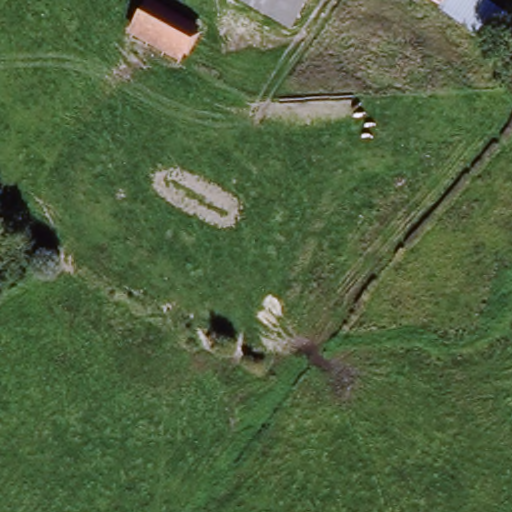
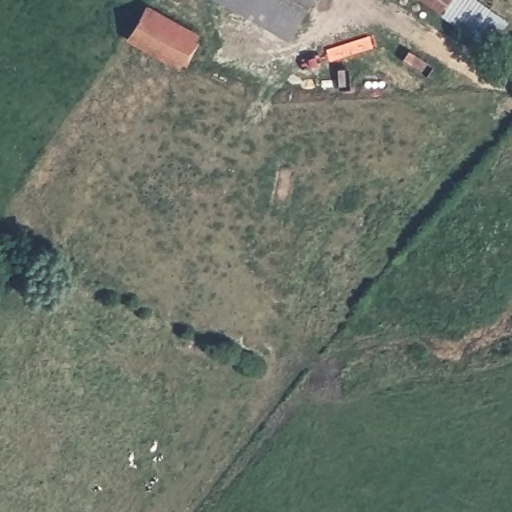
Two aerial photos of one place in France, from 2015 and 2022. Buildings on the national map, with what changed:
unchanged [(190,63),(184,60),(135,33),(128,29),(146,0),(147,0),(153,4),(200,32),(207,36),(190,63)]
unchanged [(289,40),(225,0),(313,0),(289,40)]
unchanged [(441,6),(432,0),(446,0),(441,6)]
unchanged [(503,19),(487,40),(441,6),(446,0),(478,0),(503,19)]

